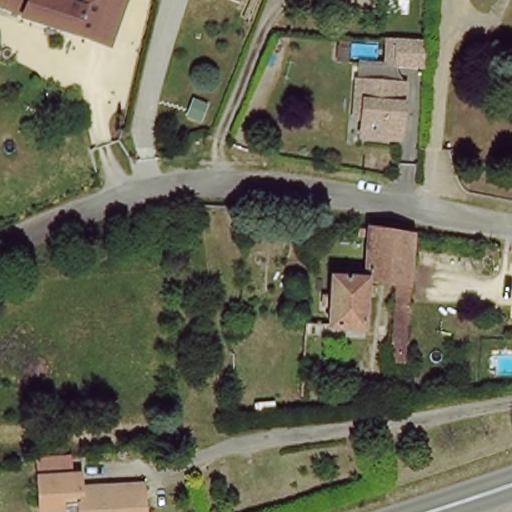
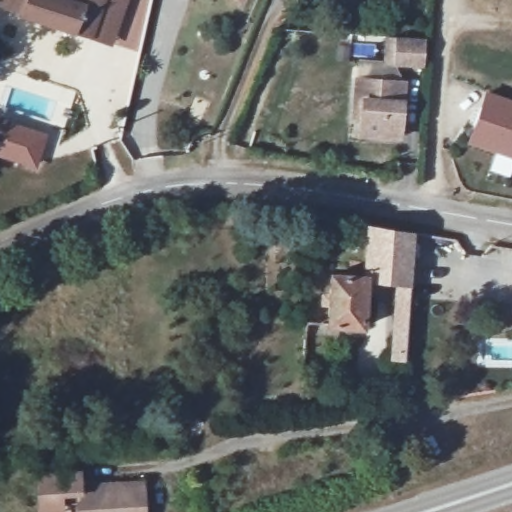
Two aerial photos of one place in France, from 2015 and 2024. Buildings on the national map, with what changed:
unchanged [(121,7),(108,51),(18,19),(20,14),(0,6),(0,0),(123,0),(121,6),(121,7)]
unchanged [(422,37),(419,81),(405,80),(380,78),(382,36),(422,37)]
unchanged [(362,118),(363,115),(355,114),(355,95),(357,76),(380,78),(405,80),(403,135),(370,132),(360,131),(362,118)]
new [(512,101),(512,161),(465,144),(485,91),(512,101)]
new [(37,169),(0,158),(0,120),(48,136),(37,169)]
unchanged [(409,231),(405,285),(362,282),(356,329),(319,324),(325,274),(360,277),(367,222),(409,231)]
unchanged [(503,284),(503,247),(512,248),(512,284),(503,284)]
unchanged [(78,474),(80,488),(138,485),(141,512),(77,512),(76,504),(39,507),(36,477),(78,474)]

